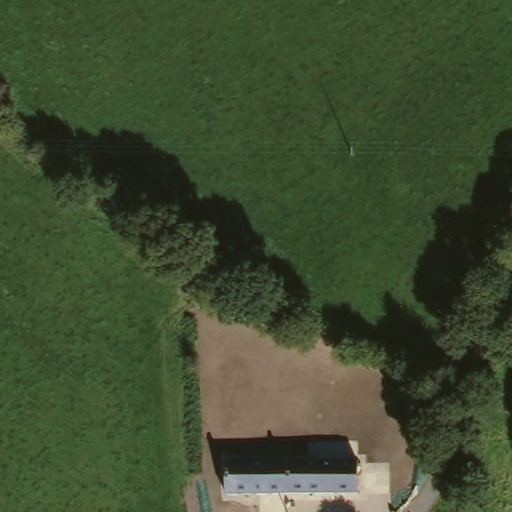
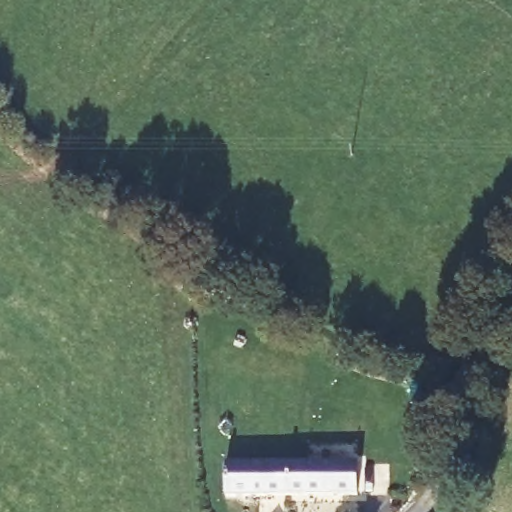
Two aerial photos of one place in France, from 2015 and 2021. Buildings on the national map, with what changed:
unchanged [(224,459),(284,458),(285,492),(259,493),(225,493),(224,459)]
unchanged [(285,492),(284,458),(287,458),(294,458),(353,458),(353,491),(285,492)]

